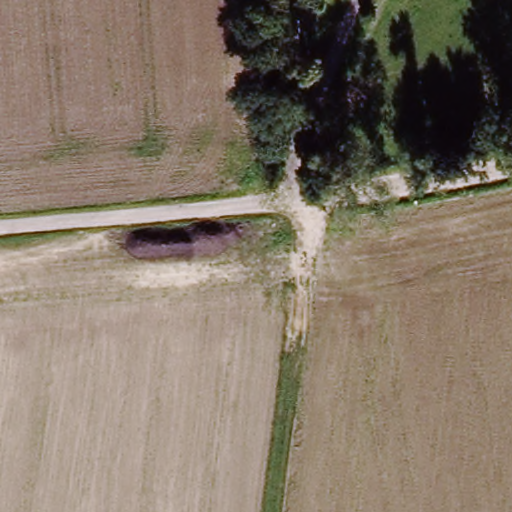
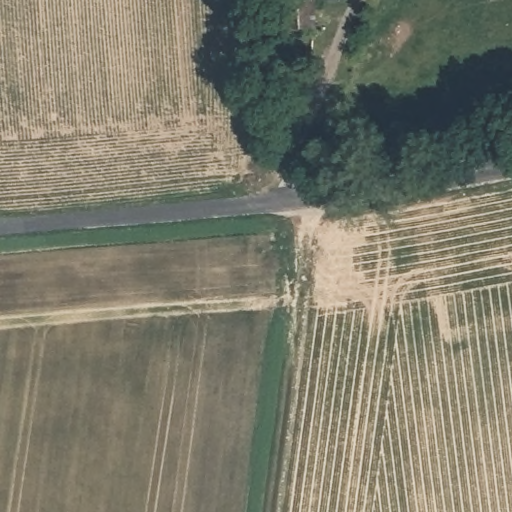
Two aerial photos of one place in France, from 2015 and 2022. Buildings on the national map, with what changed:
unchanged [(314,0),(315,12),(317,38),(291,39),(290,14),(289,0),(314,0)]

